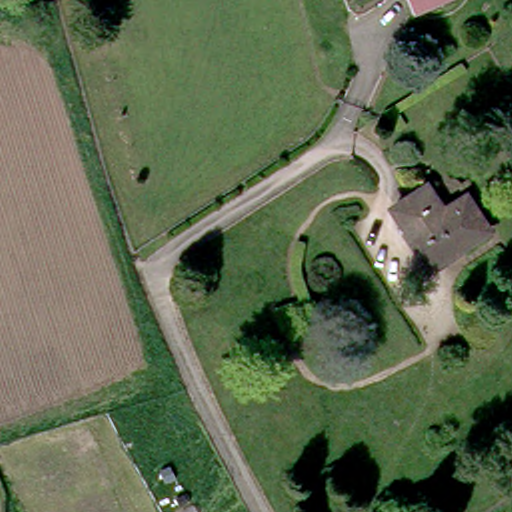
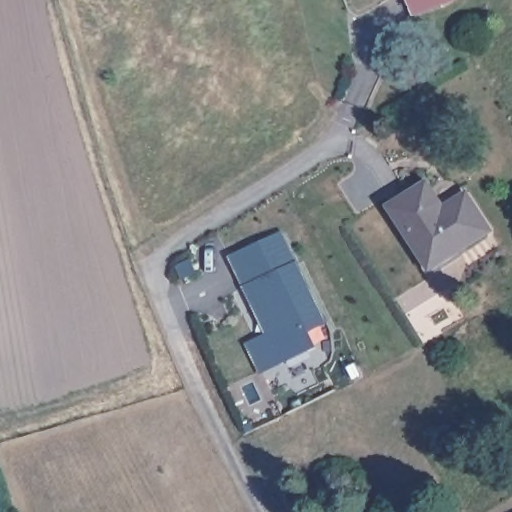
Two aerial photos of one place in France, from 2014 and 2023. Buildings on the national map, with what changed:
unchanged [(388,212),(408,199),(421,191),(437,215),(461,201),(482,234),(434,265),(425,270),(414,252),(388,212)]
new [(261,246),(275,273),(244,288),(231,261),(261,246)]
new [(259,319),(264,317),(257,302),(252,304),(244,288),(275,273),(296,263),(325,323),(306,331),(314,348),(280,364),(260,373),(247,347),(268,337),(259,319)]

